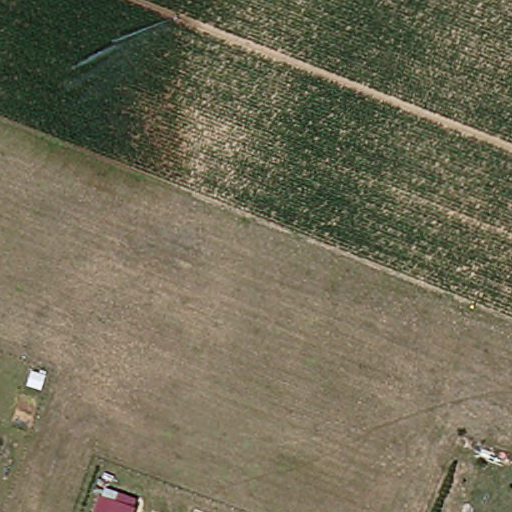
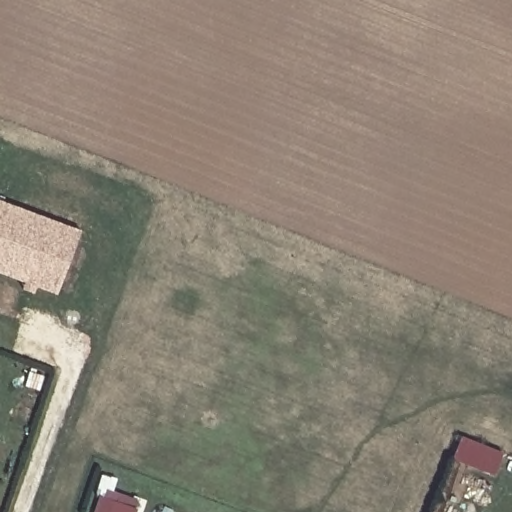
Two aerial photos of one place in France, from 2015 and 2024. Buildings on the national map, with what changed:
new [(37,286),(34,294),(22,289),(25,282),(0,273),(0,200),(82,230),(58,295),(37,286)]
unchanged [(137,512),(108,512),(112,500),(139,507),(137,512)]

